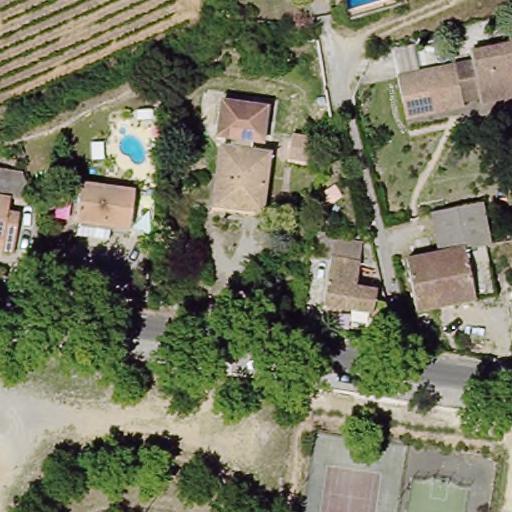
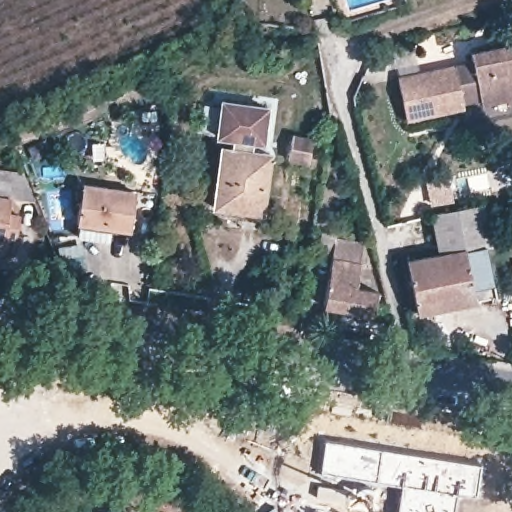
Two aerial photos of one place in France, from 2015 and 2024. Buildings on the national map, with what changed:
unchanged [(512,45),(512,96),(487,102),(483,103),(474,63),(480,62),(480,52),(512,45)]
unchanged [(420,130),(415,119),(411,108),(393,113),(389,98),(385,84),(460,62),(472,102),(445,110),(448,122),(420,130)]
unchanged [(271,140),(224,135),(225,102),(274,105),(271,140)]
unchanged [(265,220),(215,212),(225,146),(276,154),(265,220)]
unchanged [(14,216),(8,254),(0,253),(0,171),(9,172),(19,173),(29,201),(5,198),(3,214),(11,216),(14,216)]
unchanged [(439,259),(424,188),(480,177),(494,249),(487,249),(492,269),(498,300),(479,304),(420,316),(418,303),(409,265),(439,259)]
unchanged [(101,234),(80,232),(80,227),(84,193),(136,198),(131,237),(101,234)]
unchanged [(348,244),(362,247),(356,287),(375,290),(374,300),(387,303),(385,316),(326,306),(330,279),(315,276),(322,234),(338,237),(349,238),(348,244)]
new [(403,485),(321,473),(326,442),(480,466),(475,498),(455,495),(453,512),(398,512),(403,485)]
unchanged [(212,512),(192,512),(198,502),(212,512)]
new [(345,510),(345,512),(316,512),(317,507),(345,510)]

